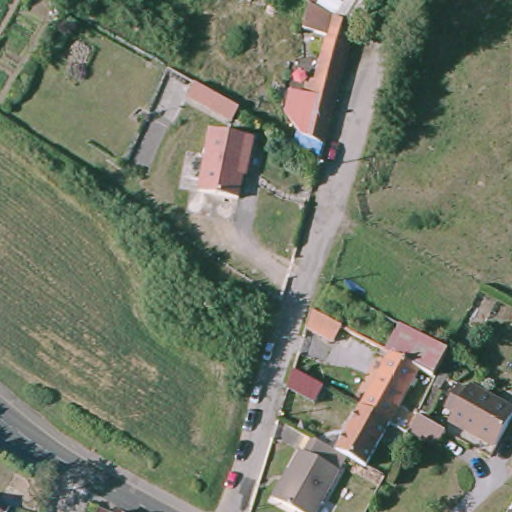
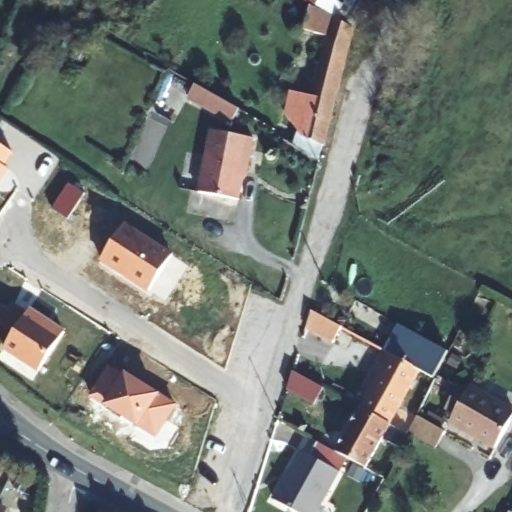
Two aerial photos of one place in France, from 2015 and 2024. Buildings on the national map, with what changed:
unchanged [(291,90),(311,95),(327,36),(304,28),(309,4),(303,0),(337,0),(344,4),(345,0),(373,0),(374,1),(355,30),(326,146),(301,136),(284,112),(291,90)]
new [(198,84),(242,110),(234,123),(190,97),(198,84)]
unchanged [(215,129),(258,137),(252,169),(248,168),(243,198),(203,191),(215,129)]
new [(14,153),(5,167),(9,170),(0,183),(0,144),(14,153)]
new [(99,261),(125,222),(174,254),(149,293),(99,261)]
new [(67,330),(39,373),(3,350),(31,307),(67,330)]
unchanged [(448,344),(433,370),(422,364),(392,347),(387,344),(394,330),(414,340),(420,328),(448,344)]
unchanged [(392,347),(422,364),(391,419),(362,401),(392,347)]
new [(139,428),(105,406),(89,397),(109,366),(124,375),(126,372),(162,394),(179,405),(157,439),(139,428)]
unchanged [(297,372),(323,388),(313,404),(291,390),(297,372)]
unchanged [(512,407),(492,440),(448,414),(465,380),(512,407)]
unchanged [(368,460),(349,451),(337,444),(362,401),(391,419),(368,460)]
unchanged [(413,425),(420,429),(441,441),(434,454),(405,438),(413,425)]
unchanged [(349,451),(315,512),(303,512),(276,496),(303,447),(307,449),(316,433),(337,444),(349,451)]
unchanged [(502,512),(512,496),(512,512),(502,512)]
unchanged [(123,512),(90,512),(94,497),(123,512)]
unchanged [(4,500),(0,507),(0,498),(4,500)]

